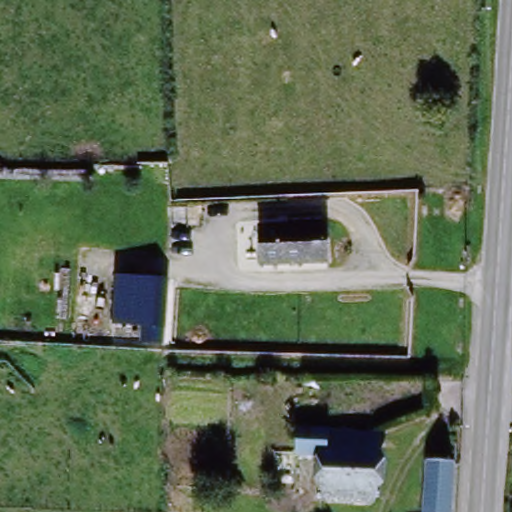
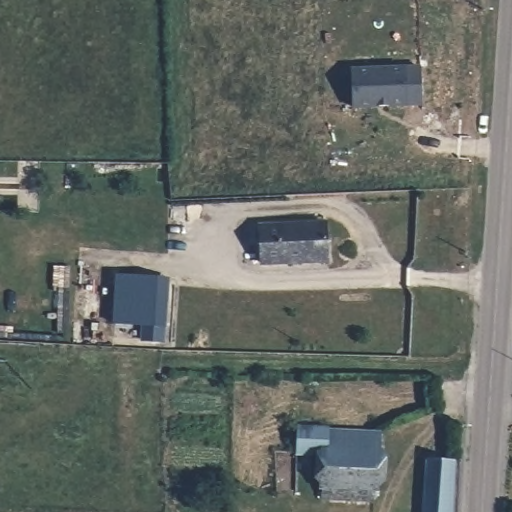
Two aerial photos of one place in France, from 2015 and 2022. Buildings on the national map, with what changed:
new [(420,65),(423,105),(353,110),(351,67),(420,65)]
unchanged [(323,227),(323,263),(258,263),(258,227),(323,227)]
unchanged [(166,280),(164,343),(138,341),(138,325),(114,323),(115,277),(166,280)]
unchanged [(330,427),(330,431),(326,455),(293,450),(298,398),(316,401),(314,426),(330,427)]
unchanged [(378,437),(370,501),(322,495),(326,455),(330,431),(378,437)]
unchanged [(431,458),(458,459),(455,512),(427,512),(431,458)]
unchanged [(179,485),(201,483),(202,512),(181,512),(179,485)]

